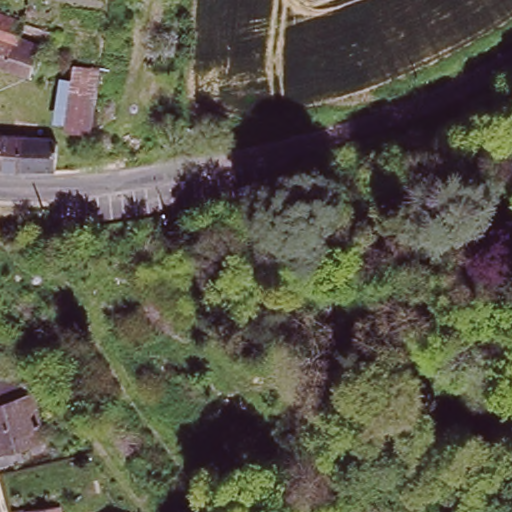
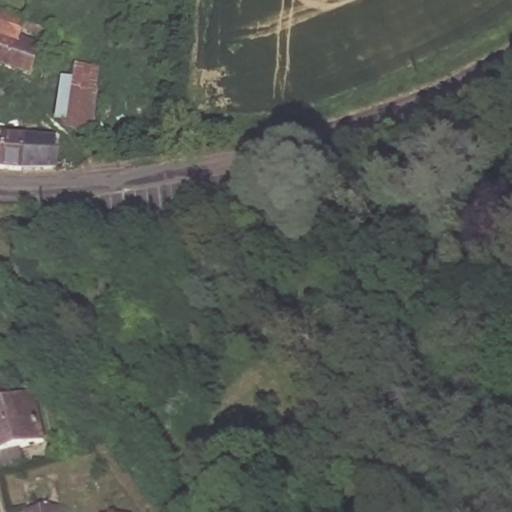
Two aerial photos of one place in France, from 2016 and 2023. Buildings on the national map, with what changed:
unchanged [(35,25),(31,41),(38,43),(29,72),(0,62),(0,13),(25,22),(35,25)]
unchanged [(53,122),(60,84),(63,71),(70,72),(72,64),(98,70),(85,135),(59,130),(60,124),(53,122)]
unchanged [(52,149),(50,174),(19,173),(0,170),(0,138),(47,145),(52,149)]
unchanged [(0,379),(15,376),(21,399),(30,397),(43,442),(22,448),(25,463),(0,468),(0,379)]
unchanged [(29,511),(62,508),(63,512),(29,512),(29,511)]

